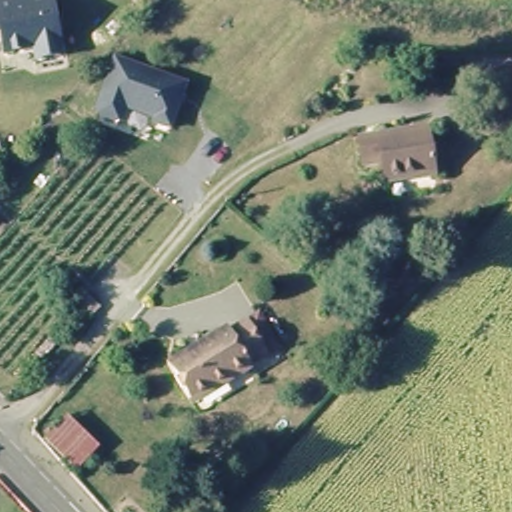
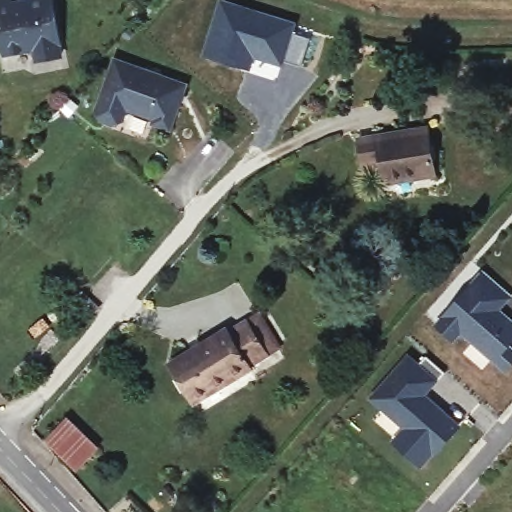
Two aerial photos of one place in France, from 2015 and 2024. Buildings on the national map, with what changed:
unchanged [(36,65),(32,53),(3,58),(0,34),(0,0),(14,0),(56,0),(65,58),(36,65)]
new [(229,0),(297,21),(294,31),(310,38),(300,66),(284,61),(276,79),(201,56),(218,0),(229,0)]
unchanged [(190,81),(172,131),(150,124),(150,120),(127,112),(122,126),(92,116),(112,56),(190,81)]
unchanged [(382,145),(432,138),(436,177),(380,184),(378,169),(361,171),(357,140),(381,136),(382,145)]
new [(482,268),(512,295),(512,299),(502,310),(512,318),(512,369),(507,374),(461,335),(455,342),(434,325),(482,268)]
unchanged [(174,364),(246,323),(264,313),(284,347),(267,358),(196,400),(174,364)]
new [(408,353),(418,363),(426,355),(445,372),(427,393),(462,426),(421,469),(390,441),(401,428),(368,398),(408,353)]
unchanged [(68,417),(101,449),(77,474),(43,439),(68,417)]

